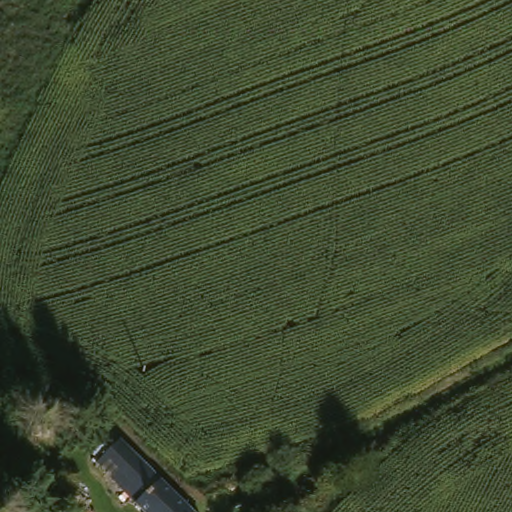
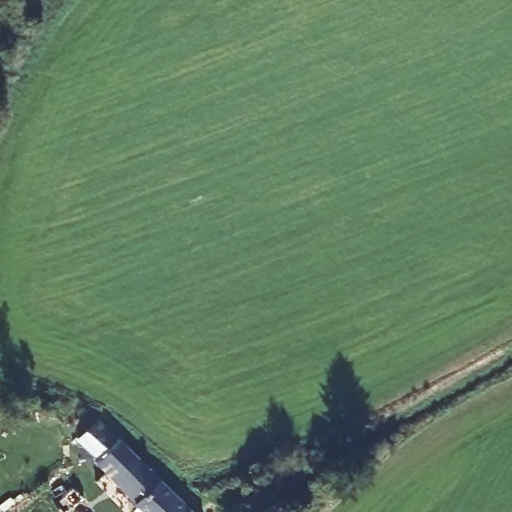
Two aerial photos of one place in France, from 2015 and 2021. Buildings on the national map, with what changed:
unchanged [(107,482),(134,457),(187,512),(137,512),(107,482)]
unchanged [(204,489),(242,474),(245,479),(238,488),(241,495),(215,508),(204,489)]

